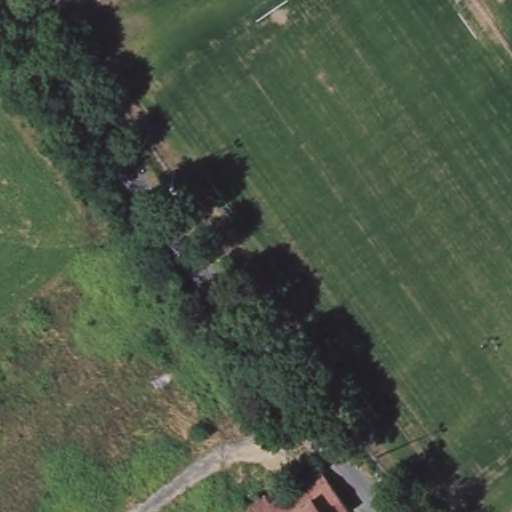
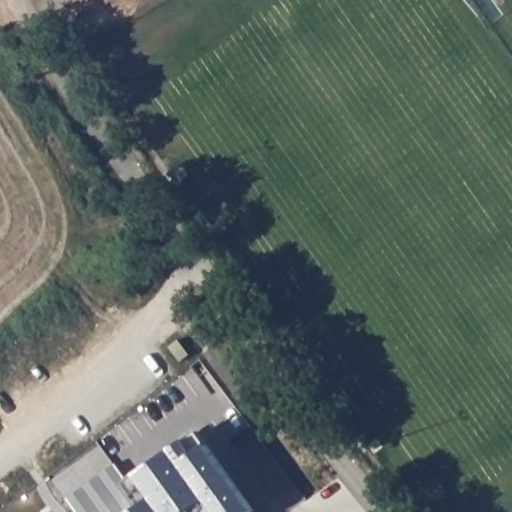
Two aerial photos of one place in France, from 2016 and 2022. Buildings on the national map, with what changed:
new [(178,340),(190,355),(183,360),(171,345),(178,340)]
new [(115,462),(127,480),(198,428),(208,442),(256,507),(250,512),(78,512),(67,498),(115,462)]
demolished [(270,500),(318,466),(349,508),(343,512),(253,512),(247,505),(265,492),(270,500)]
demolished [(253,512),(237,512),(247,505),(253,512)]

